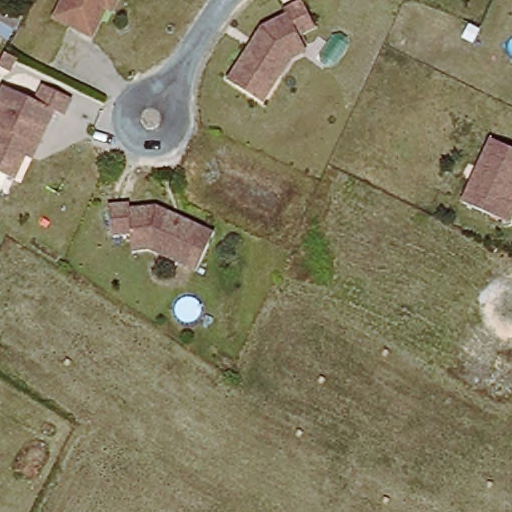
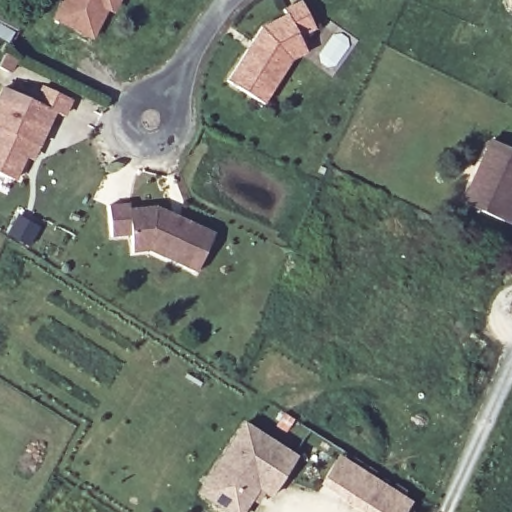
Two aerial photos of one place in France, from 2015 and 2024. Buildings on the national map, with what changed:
unchanged [(23,8),(13,26),(0,20),(0,0),(8,0),(23,8)]
unchanged [(110,8),(106,6),(89,34),(54,15),(63,0),(114,0),(110,8)]
unchanged [(281,75),(261,103),(226,79),(261,27),(285,15),(283,11),(301,2),(315,31),(298,39),(301,45),(302,52),(290,62),(281,75)]
unchanged [(12,74),(0,68),(0,67),(8,50),(22,58),(12,74)]
unchanged [(16,180),(0,172),(0,132),(1,128),(0,128),(0,102),(7,86),(38,100),(46,85),(74,98),(65,115),(60,111),(40,146),(35,157),(28,154),(16,180)]
unchanged [(463,202),(493,139),(512,148),(512,212),(507,222),(463,202)]
unchanged [(132,249),(131,242),(131,233),(111,234),(109,202),(130,201),(130,206),(156,205),(214,232),(196,271),(165,256),(150,249),(132,249)]
new [(270,498),(258,491),(244,512),(219,512),(195,495),(243,422),(296,456),(270,498)]
new [(367,510),(329,485),(325,482),(340,459),(343,462),(382,488),(367,510)]

